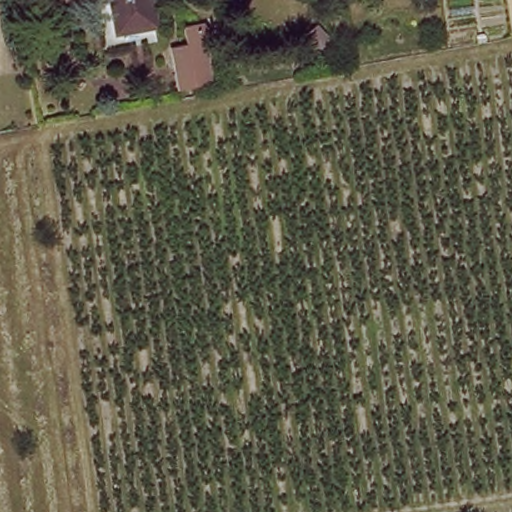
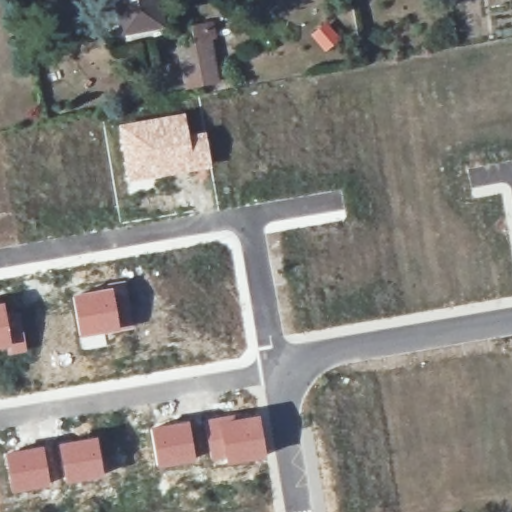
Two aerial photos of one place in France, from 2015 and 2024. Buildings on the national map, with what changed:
unchanged [(126,35),(120,0),(155,0),(160,30),(126,35)]
unchanged [(222,85),(185,91),(178,48),(195,45),(191,26),(212,24),(222,85)]
new [(185,111),(189,133),(206,130),(212,168),(127,183),(117,123),(185,111)]
new [(107,347),(81,351),(70,294),(111,285),(126,282),(135,328),(120,330),(105,333),(107,347)]
new [(6,301),(8,310),(18,304),(26,352),(6,355),(5,350),(0,350),(0,302),(6,301)]
new [(259,413),(266,459),(211,465),(202,419),(259,413)]
new [(190,420),(196,461),(155,468),(147,427),(190,420)]
new [(97,436),(105,477),(65,484),(57,443),(97,436)]
new [(43,445),(51,486),(11,494),(2,453),(43,445)]

